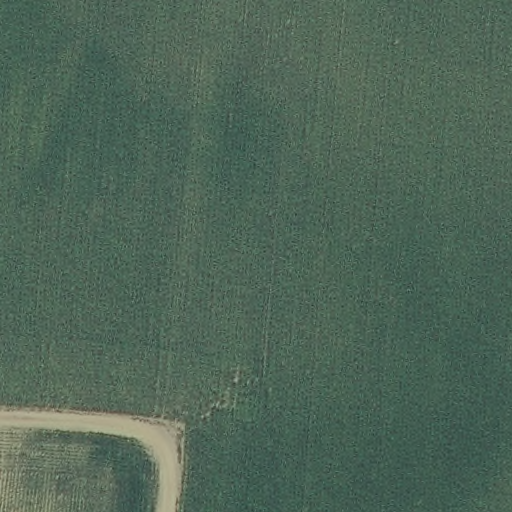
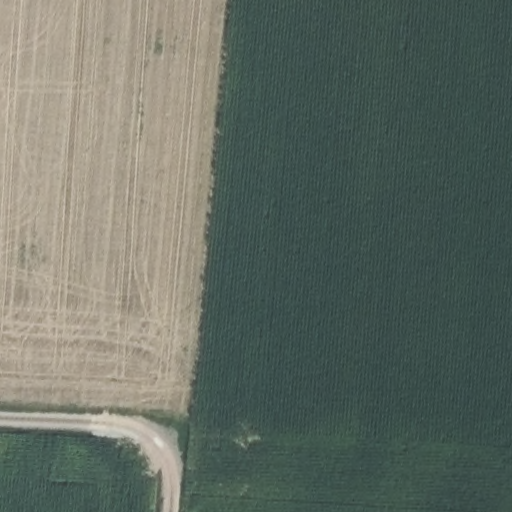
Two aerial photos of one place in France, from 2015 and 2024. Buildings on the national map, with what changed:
[]

